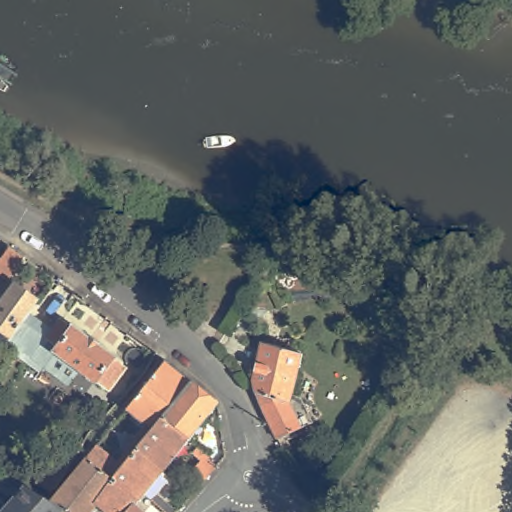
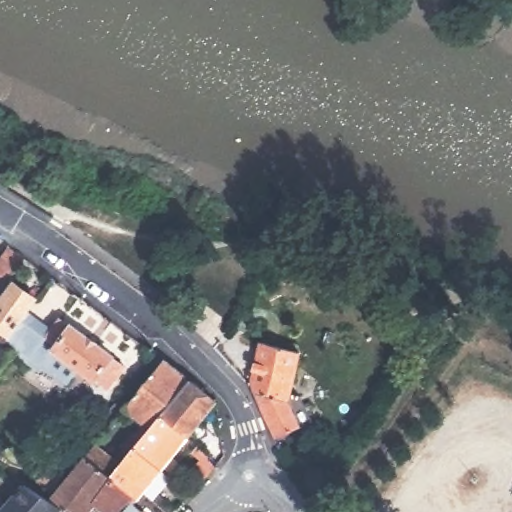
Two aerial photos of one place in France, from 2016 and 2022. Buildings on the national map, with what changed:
unchanged [(10,283),(0,276),(0,269),(13,251),(26,261),(10,283)]
unchanged [(11,345),(10,348),(0,341),(0,296),(7,301),(16,288),(40,306),(38,308),(33,316),(11,345)]
unchanged [(33,316),(42,324),(56,334),(34,363),(21,353),(11,345),(33,316)]
unchanged [(78,331),(119,361),(118,363),(130,373),(114,395),(101,385),(99,387),(83,373),(70,390),(34,363),(56,334),(64,324),(76,333),(78,331)]
unchanged [(10,348),(0,363),(0,341),(10,348)]
unchanged [(251,385),(251,382),(250,382),(261,342),(300,353),(287,401),(299,427),(275,438),(273,435),(269,426),(265,420),(262,412),(259,405),(254,391),(251,385)]
unchanged [(163,365),(191,386),(163,423),(137,456),(121,476),(121,477),(92,454),(104,440),(121,453),(131,440),(134,442),(143,430),(124,415),(163,365)]
unchanged [(191,386),(217,408),(217,409),(188,444),(163,423),(191,386)]
unchanged [(189,474),(197,465),(181,452),(163,475),(161,474),(137,456),(163,423),(188,444),(192,448),(210,462),(208,464),(218,473),(205,487),(189,474)]
unchanged [(55,495),(36,484),(65,440),(81,451),(56,492),(55,495)]
unchanged [(121,477),(113,487),(94,512),(61,512),(51,506),(92,454),(121,477)]
unchanged [(161,474),(163,475),(176,488),(171,493),(165,488),(155,501),(168,512),(156,512),(141,500),(136,505),(113,487),(121,477),(121,476),(137,456),(161,474)]
unchanged [(136,505),(133,510),(135,512),(94,512),(113,487),(136,505)]
unchanged [(30,492),(49,504),(51,506),(61,512),(7,512),(26,489),(30,492)]

